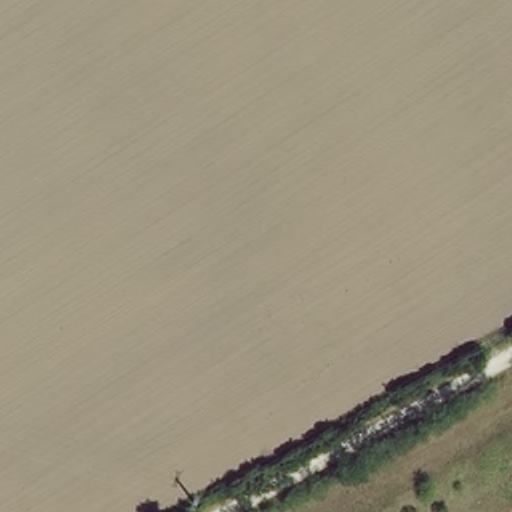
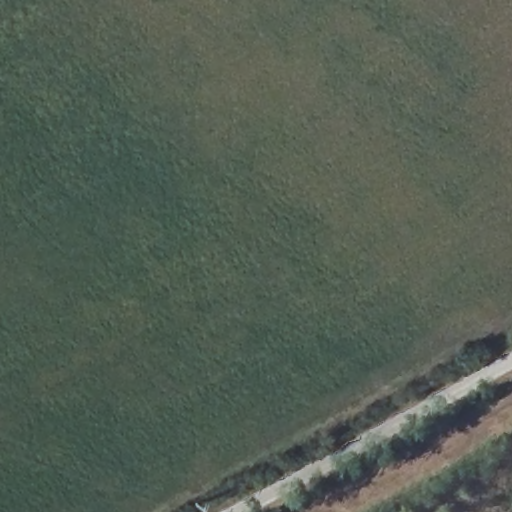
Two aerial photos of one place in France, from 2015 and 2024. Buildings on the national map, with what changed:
[]

